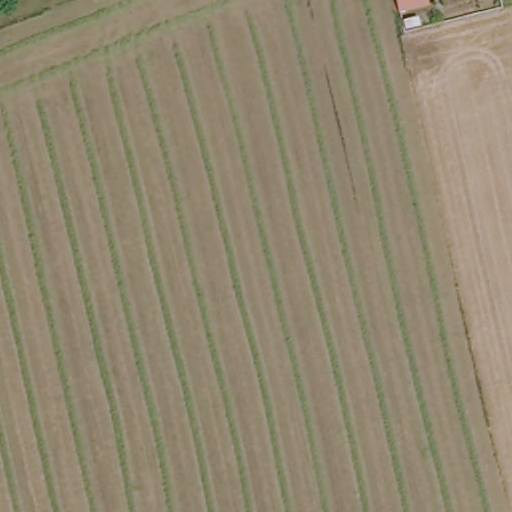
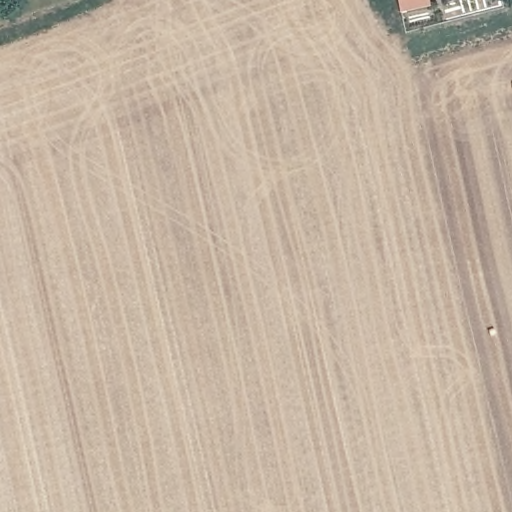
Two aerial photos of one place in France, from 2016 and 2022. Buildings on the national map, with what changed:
unchanged [(385,0),(415,0),(417,8),(388,14),(385,0)]

